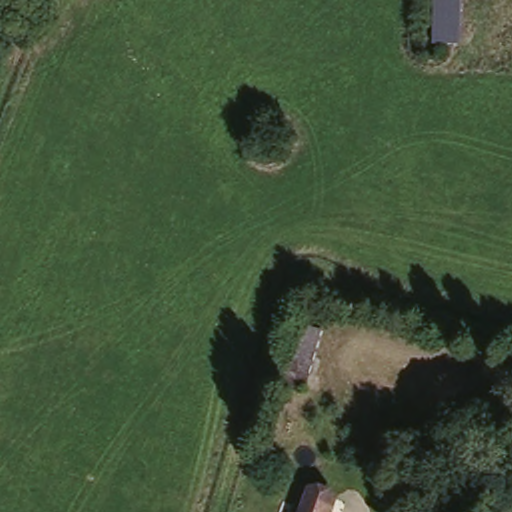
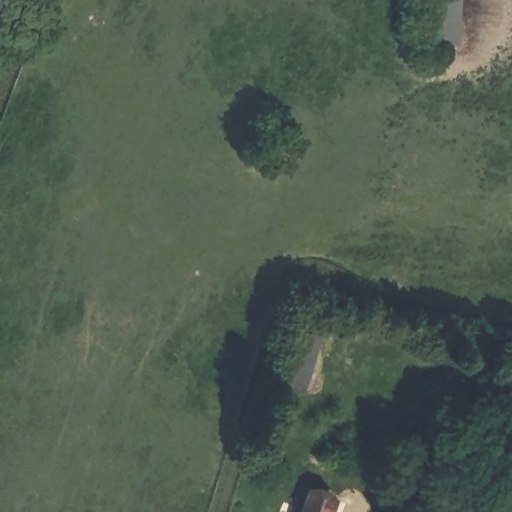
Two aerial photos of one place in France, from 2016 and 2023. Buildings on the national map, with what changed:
unchanged [(433,0),(466,0),(465,48),(430,46),(433,0)]
unchanged [(311,399),(280,394),(285,369),(286,359),(295,316),(323,323),(311,399)]
unchanged [(450,346),(446,374),(365,359),(370,331),(450,346)]
unchanged [(307,489),(337,499),(333,512),(301,512),(298,511),(307,489)]

